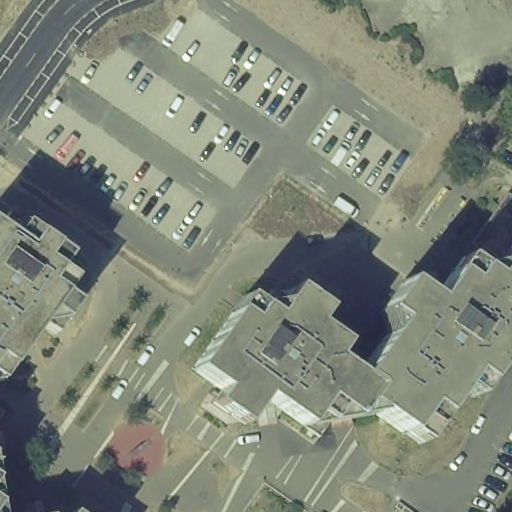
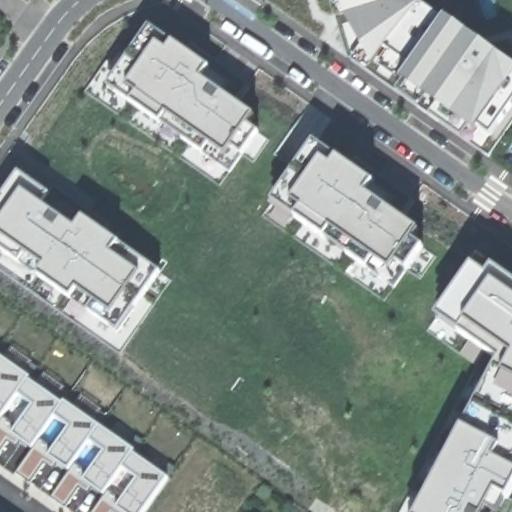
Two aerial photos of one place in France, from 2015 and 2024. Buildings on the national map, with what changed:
demolished [(120,91),(104,81),(88,106),(70,95),(42,141),(30,129),(8,158),(0,152),(0,9),(6,0),(36,0),(60,15),(71,2),(127,42),(117,59),(130,68),(152,40),(166,48),(176,33),(192,43),(200,31),(240,60),(252,47),(266,56),(278,43),(290,50),(300,36),(347,67),(337,85),(376,118),(345,164),(329,150),(316,165),(292,147),(272,172),(233,142),(222,156),(120,91)]
new [(420,4),(467,37),(475,44),(512,69),(512,125),(489,158),(347,58),(330,0),(419,0),(420,4)]
new [(150,27),(186,53),(192,45),(249,85),(235,104),(255,118),(249,126),(259,133),(230,174),(107,88),(150,27)]
new [(297,168),(314,143),(350,168),(355,160),(413,201),(400,219),(420,233),(414,242),(424,249),(395,289),(272,203),(297,168)]
new [(7,192),(19,174),(49,195),(54,187),(90,212),(110,227),(105,234),(161,273),(119,334),(0,251),(0,202),(7,192)]
demolished [(272,314),(295,286),(325,311),(317,322),(346,343),(335,359),(361,373),(395,321),(382,307),(407,279),(430,296),(464,257),(510,192),(512,193),(512,310),(500,329),(512,338),(512,343),(477,387),(465,377),(418,444),(375,415),(363,430),(321,400),(302,426),(261,398),(240,423),(212,402),(220,387),(195,369),(244,295),(272,314)]
demolished [(12,237),(24,223),(67,254),(58,268),(72,280),(61,292),(75,304),(62,320),(50,310),(7,372),(0,366),(0,227),(12,237)]
new [(436,318),(472,267),(479,258),(492,268),(512,281),(512,493),(509,500),(512,502),(512,512),(419,512),(499,363),(436,318)]
new [(132,512),(105,495),(94,512),(66,512),(0,466),(0,360),(167,481),(149,512),(132,512)]
demolished [(2,503),(0,505),(0,501),(2,503)]
demolished [(74,512),(71,512),(72,511),(74,512)]

